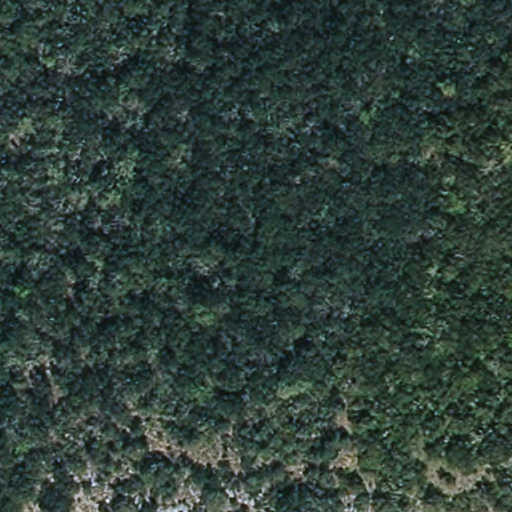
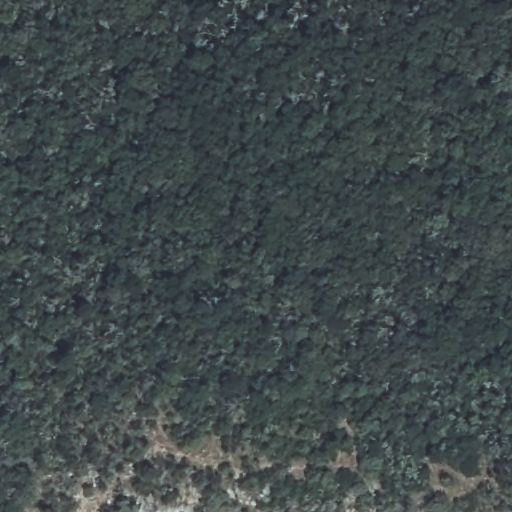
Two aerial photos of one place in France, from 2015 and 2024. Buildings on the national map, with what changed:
[]

